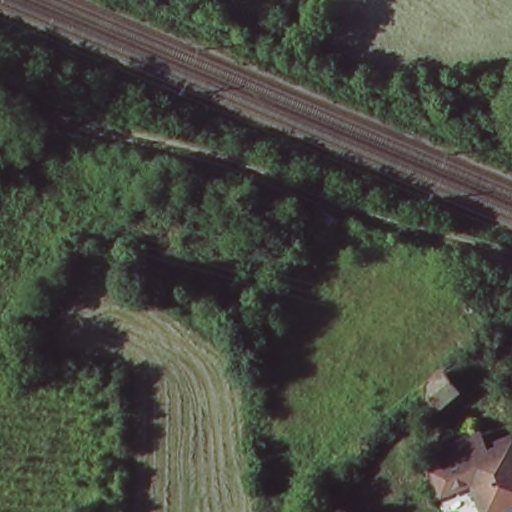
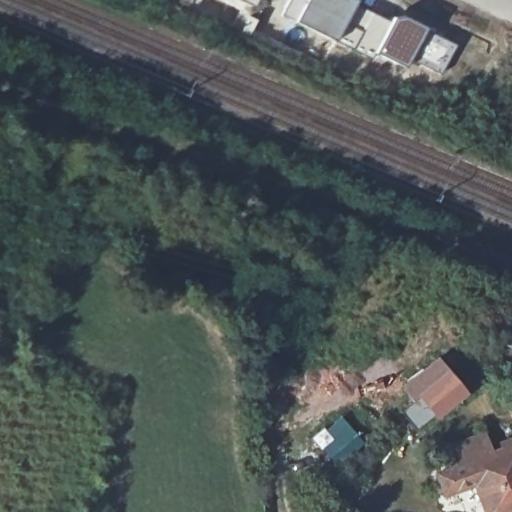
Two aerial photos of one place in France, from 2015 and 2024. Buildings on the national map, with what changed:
new [(196,0),(194,5),(183,0),(196,0)]
new [(237,0),(254,0),(251,6),(237,0)]
new [(374,55),(373,58),(294,22),(280,15),(288,0),(354,0),(390,20),(374,55)]
new [(390,20),(393,15),(425,27),(411,59),(406,68),(374,55),(390,20)]
new [(425,27),(455,43),(441,74),(411,59),(425,27)]
unchanged [(337,220),(325,235),(313,229),(323,215),(337,220)]
unchanged [(460,393),(442,408),(425,390),(444,375),(460,393)]
unchanged [(434,470),(447,465),(440,447),(487,428),(493,448),(512,441),(512,509),(503,512),(483,512),(475,487),(442,495),(434,470)]

